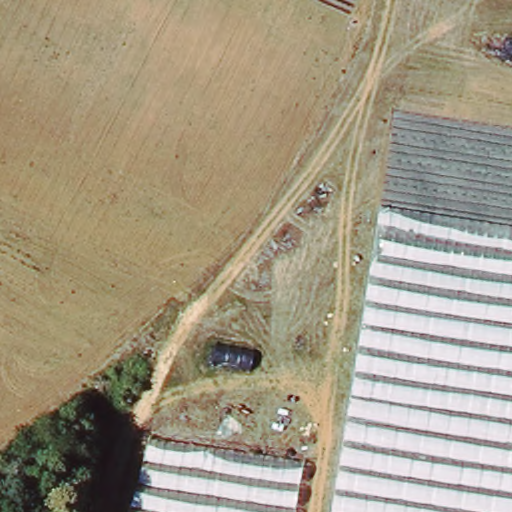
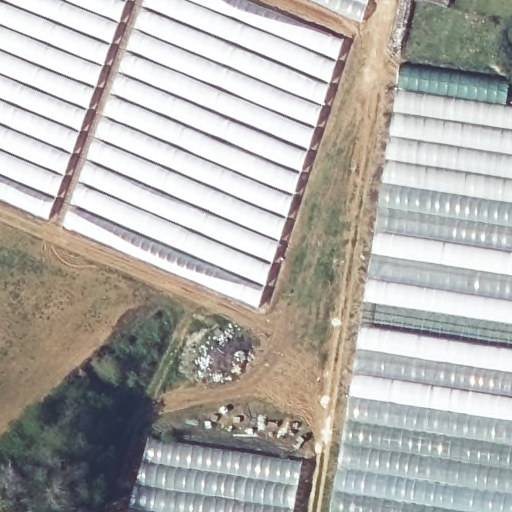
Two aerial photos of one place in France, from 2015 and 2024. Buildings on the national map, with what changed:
new [(103,79),(48,221),(0,201),(0,0),(129,0),(103,79)]
new [(84,159),(128,36),(141,0),(248,0),(307,25),(346,38),(278,251),(258,310),(61,226),(84,159)]
new [(512,105),(512,512),(330,512),(398,87),(512,105)]
demolished [(30,408),(0,428),(0,393),(30,408)]
unchanged [(303,461),(295,512),(128,512),(149,438),(303,461)]

